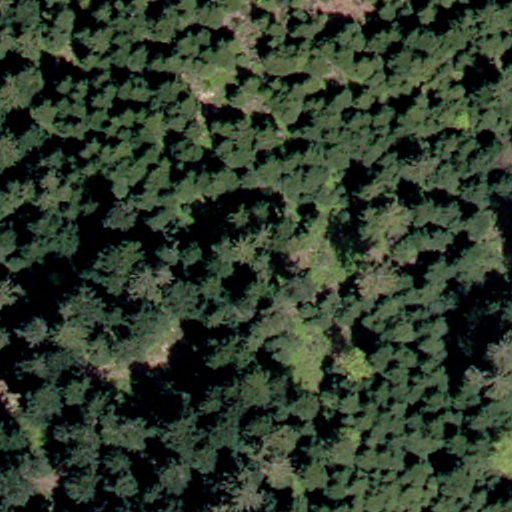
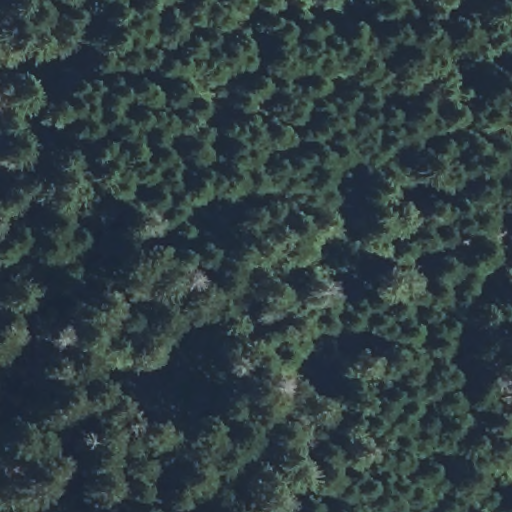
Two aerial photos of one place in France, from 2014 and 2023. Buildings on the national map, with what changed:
[]

